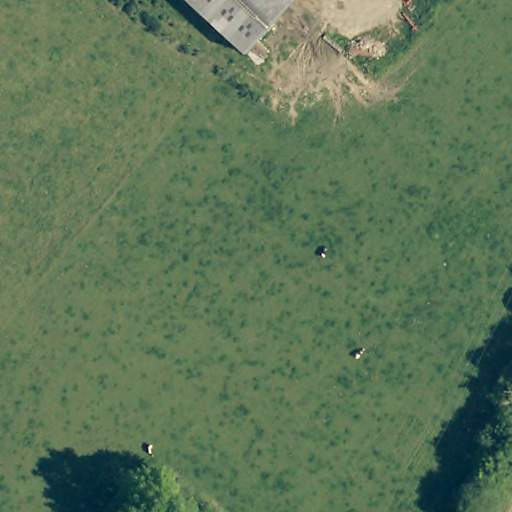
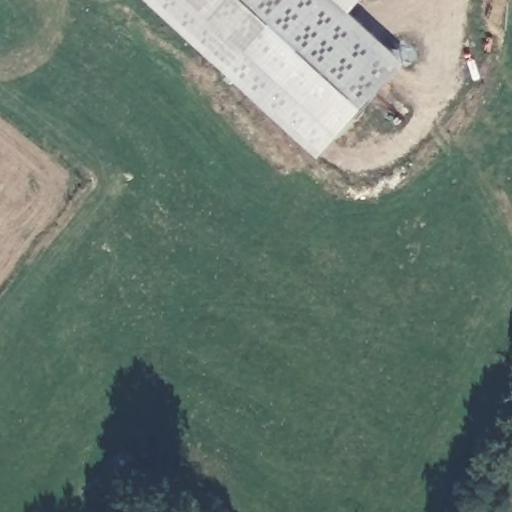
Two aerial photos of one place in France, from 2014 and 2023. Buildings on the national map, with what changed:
new [(226,75),(144,0),(186,0),(246,55),(226,75)]
unchanged [(186,0),(296,0),(246,55),(186,0)]
new [(296,0),(338,0),(405,65),(318,159),(226,75),(246,55),(296,0)]

